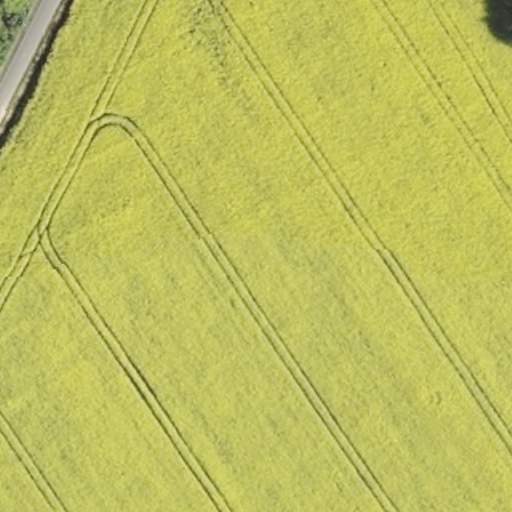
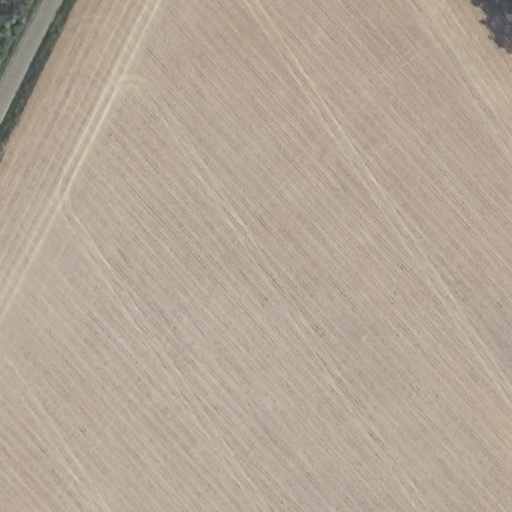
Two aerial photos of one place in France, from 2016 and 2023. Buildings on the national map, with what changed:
[]

